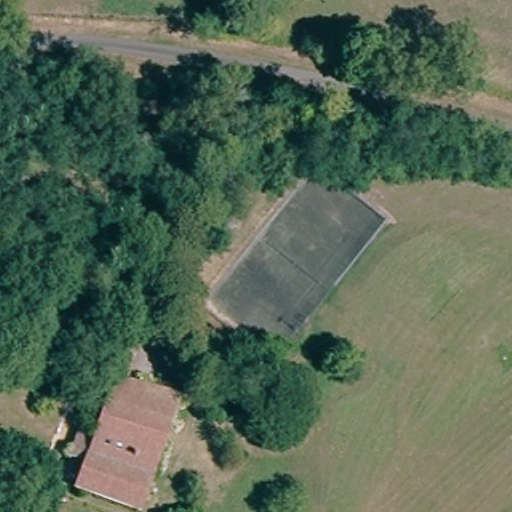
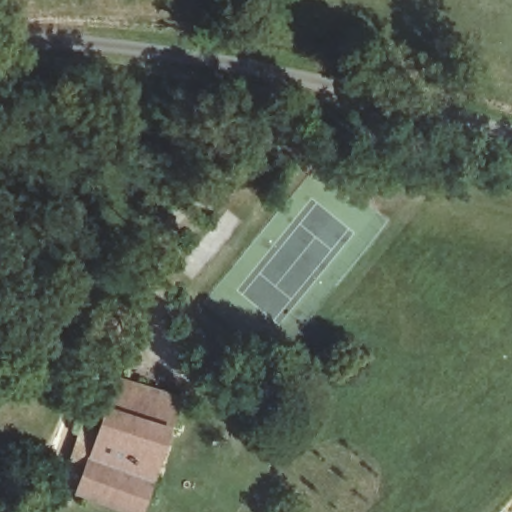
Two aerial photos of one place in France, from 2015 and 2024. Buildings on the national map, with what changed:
unchanged [(160,373),(184,381),(179,393),(184,395),(137,512),(114,512),(79,498),(90,470),(71,462),(85,428),(102,433),(125,374),(152,383),(160,373)]

